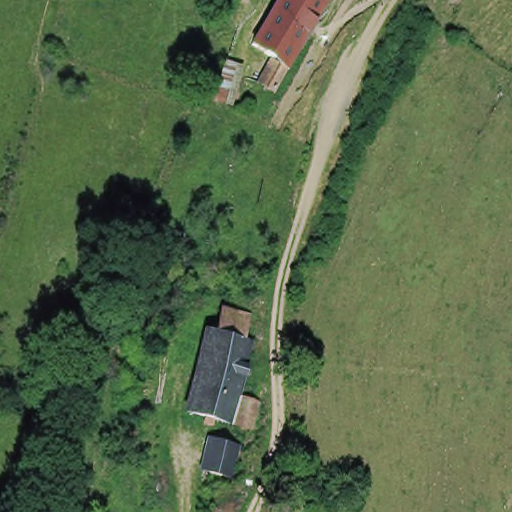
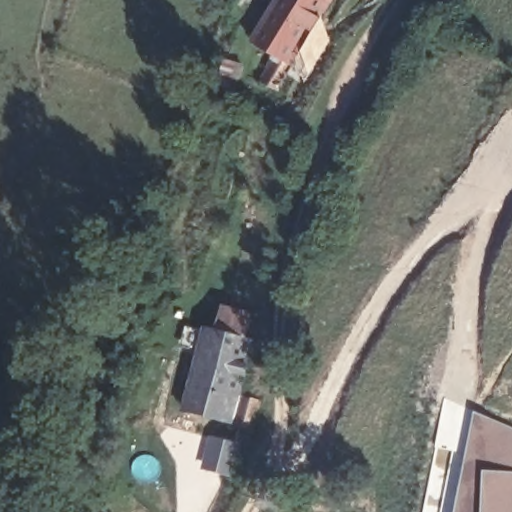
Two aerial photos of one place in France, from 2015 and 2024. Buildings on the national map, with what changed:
unchanged [(268,76),(281,51),(259,39),(283,0),(334,0),(297,61),(283,85),(268,76)]
unchanged [(233,105),(226,104),(218,101),(218,100),(228,62),(244,67),(233,105)]
unchanged [(232,421),(186,410),(207,328),(216,330),(217,325),(222,326),(226,309),(253,315),(246,338),(253,340),(239,393),(260,400),(252,426),(232,421)]
new [(512,424),(512,512),(453,512),(472,411),(512,424)]
unchanged [(234,467),(211,458),(223,428),(246,436),(234,467)]
unchanged [(299,505),(289,509),(286,501),(296,497),(299,505)]

